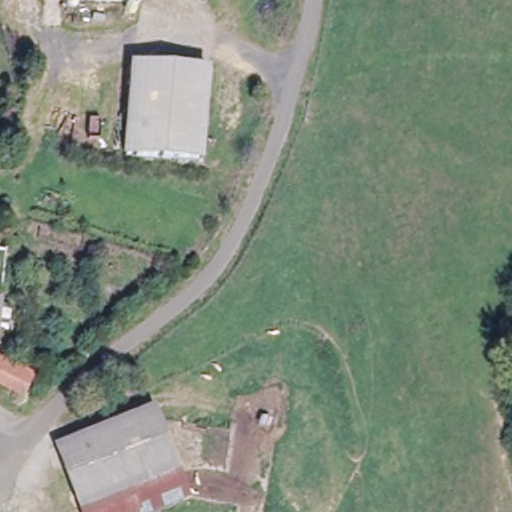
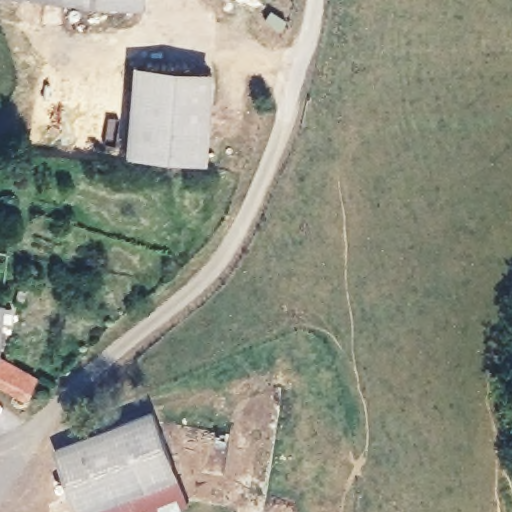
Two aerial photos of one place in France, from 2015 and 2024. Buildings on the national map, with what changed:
unchanged [(204,161),(129,161),(125,72),(199,67),(204,161)]
unchanged [(0,356),(57,377),(42,403),(30,400),(0,386),(0,356)]
unchanged [(79,512),(55,441),(152,402),(177,474),(81,512),(79,512)]
unchanged [(162,512),(81,512),(177,474),(188,502),(162,512)]

